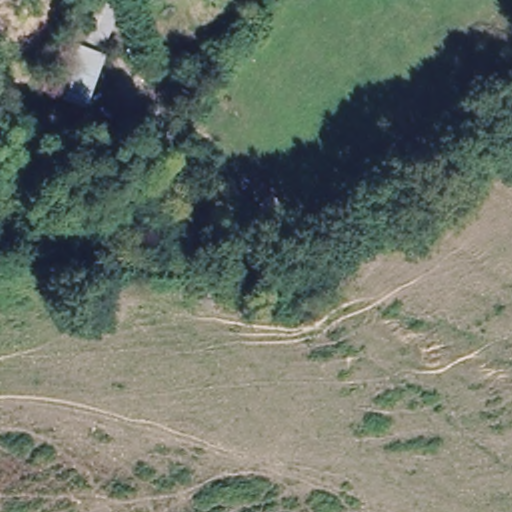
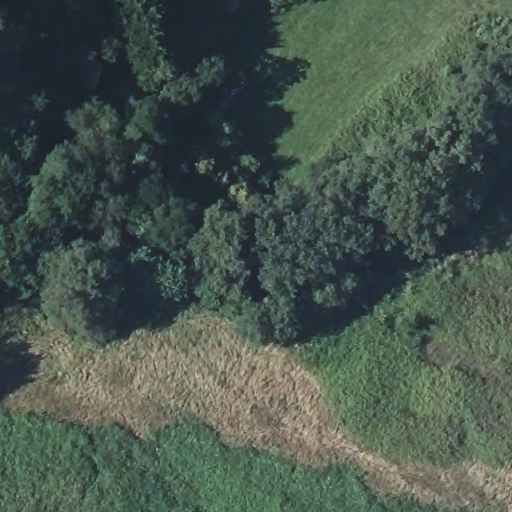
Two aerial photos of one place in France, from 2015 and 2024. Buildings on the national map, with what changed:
unchanged [(110,48),(118,54),(85,108),(38,87),(82,0),(102,0),(126,9),(110,48)]

